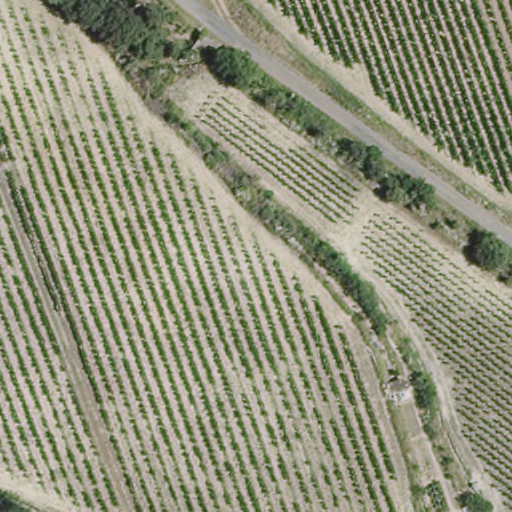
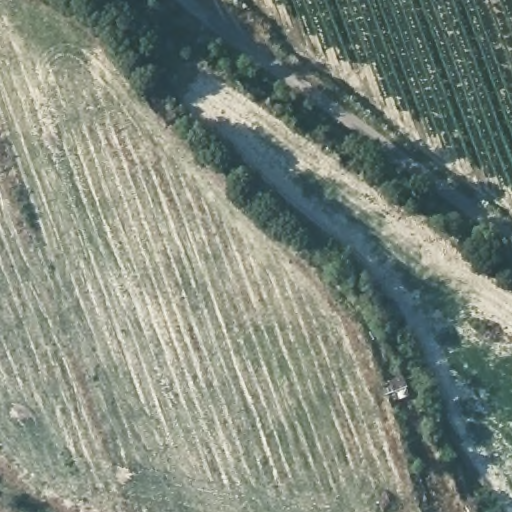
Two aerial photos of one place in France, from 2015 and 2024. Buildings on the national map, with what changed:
unchanged [(195,65),(187,56),(205,31),(223,48),(207,72),(195,65)]

